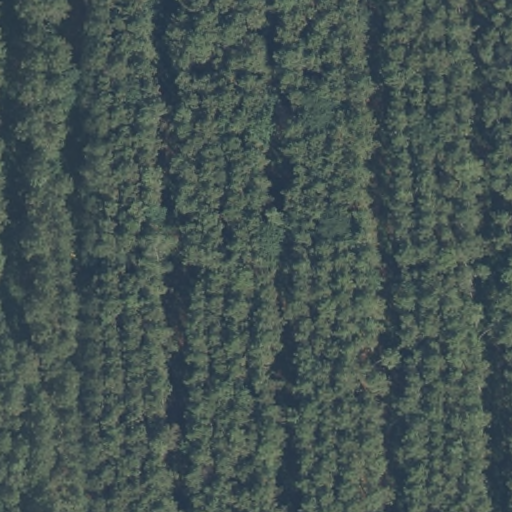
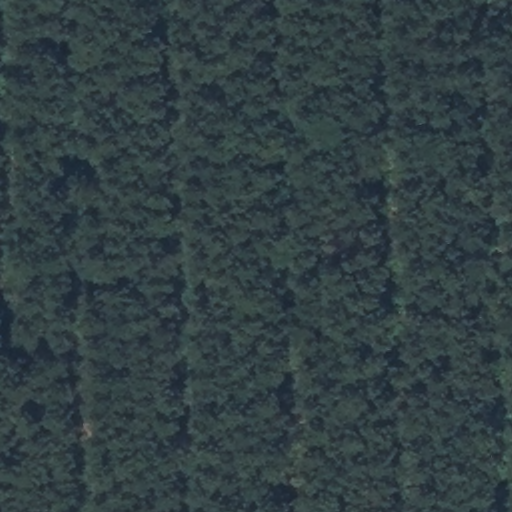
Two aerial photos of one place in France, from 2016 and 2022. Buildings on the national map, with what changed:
[]

